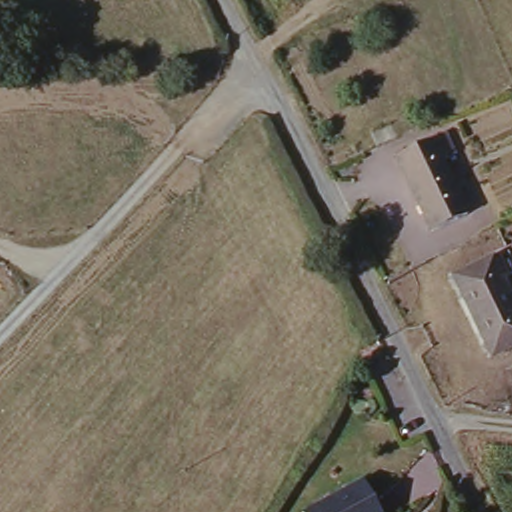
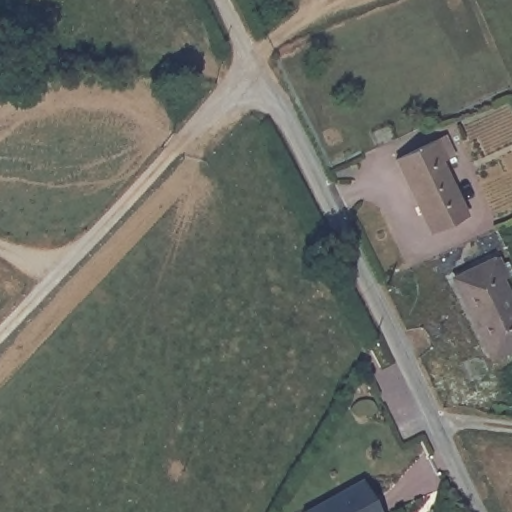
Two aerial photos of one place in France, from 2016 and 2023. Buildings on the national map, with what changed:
unchanged [(441,134),(450,154),(438,160),(464,216),(427,233),(392,155),(441,134)]
unchanged [(494,262),(505,258),(511,271),(500,276),(512,302),(512,347),(486,360),(448,275),(490,256),(494,262)]
unchanged [(375,512),(304,512),(358,482),(375,512)]

